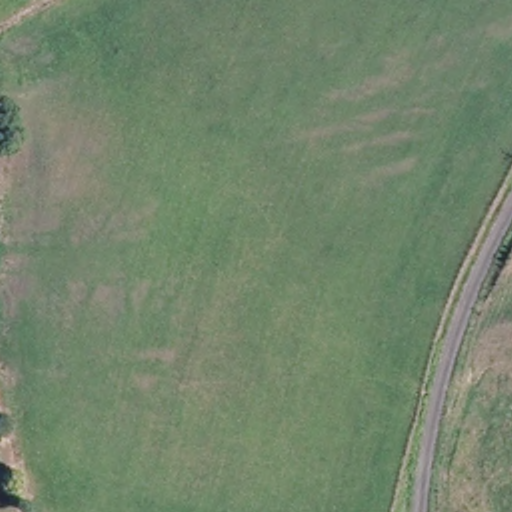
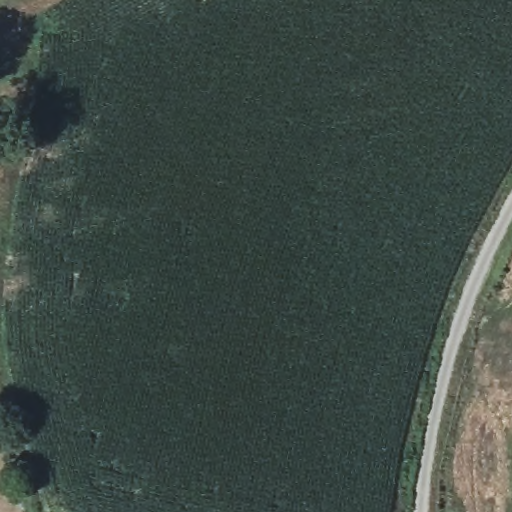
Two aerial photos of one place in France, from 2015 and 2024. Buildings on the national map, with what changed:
[]

